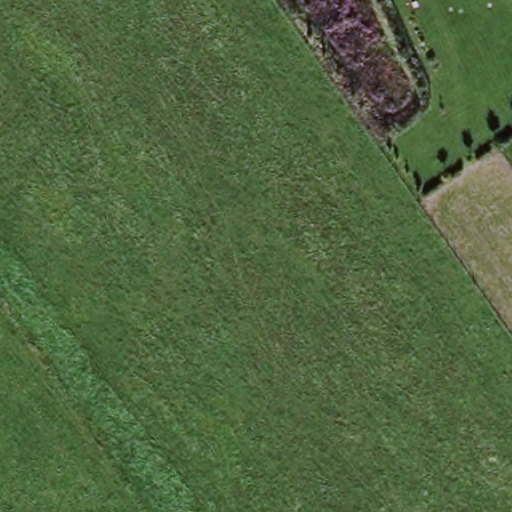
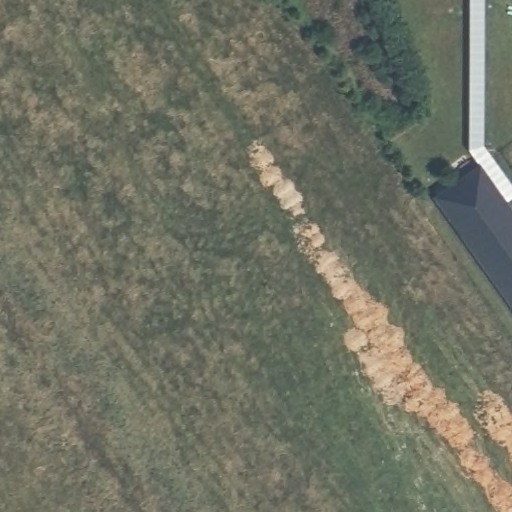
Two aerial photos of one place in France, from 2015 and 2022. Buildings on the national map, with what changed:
new [(512,309),(432,196),(478,164),(512,211),(512,309)]

